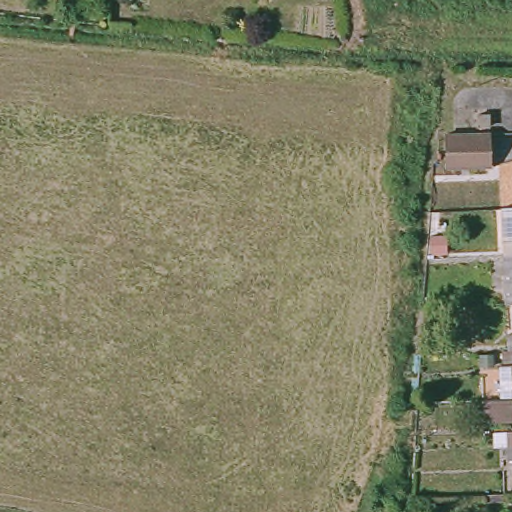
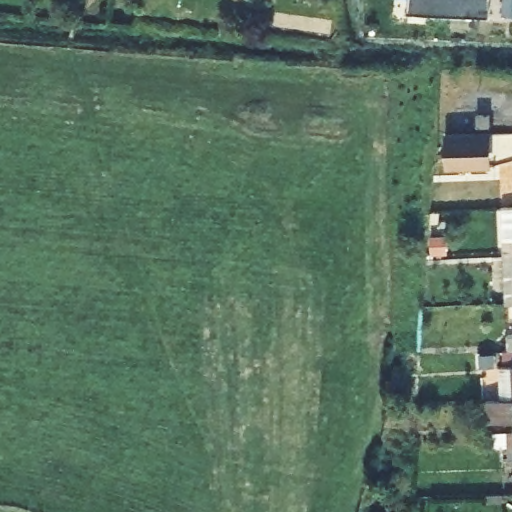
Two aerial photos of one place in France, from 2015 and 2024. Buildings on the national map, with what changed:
new [(494,1),(492,15),(433,13),(410,11),(411,0),(491,0),(490,1),(494,1)]
unchanged [(489,117),(490,130),(475,130),(475,117),(489,117)]
unchanged [(444,136),(485,135),(487,162),(487,169),(445,170),(445,164),(444,136)]
unchanged [(500,204),(512,204),(512,238),(502,238),(500,204)]
unchanged [(502,252),(512,252),(512,301),(504,301),(502,252)]
unchanged [(504,333),(512,333),(512,349),(505,349),(504,333)]
unchanged [(499,397),(497,363),(502,363),(502,349),(505,349),(512,349),(512,397),(505,397),(499,397)]
unchanged [(505,397),(512,397),(512,446),(505,446),(505,397)]
unchanged [(505,446),(512,446),(512,460),(505,460),(505,446)]

